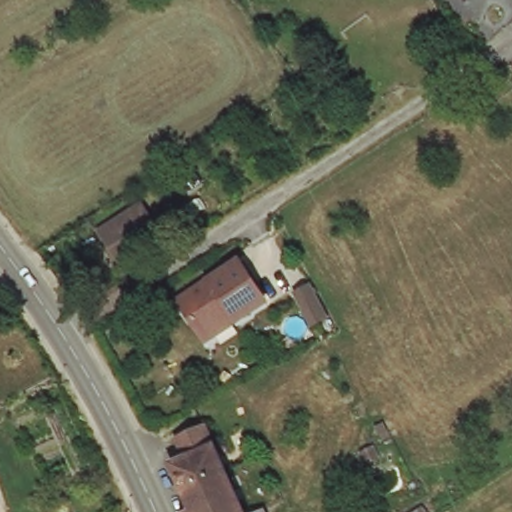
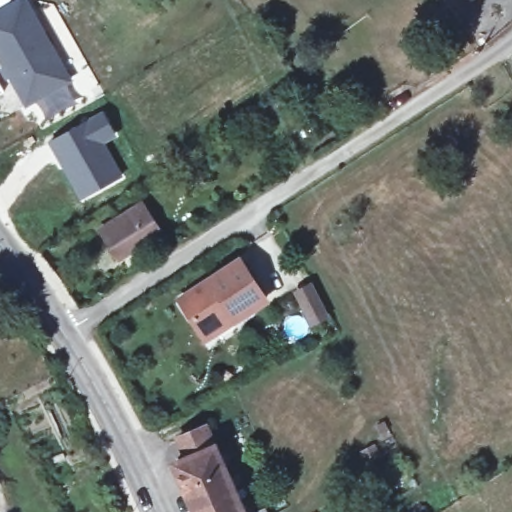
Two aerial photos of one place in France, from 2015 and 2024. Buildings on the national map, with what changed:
new [(37,102),(25,109),(0,65),(0,8),(14,0),(29,0),(74,81),(69,84),(78,102),(47,120),(37,102)]
unchanged [(469,0),(470,0),(470,1),(469,0)]
new [(102,109),(119,137),(107,144),(124,176),(79,201),(47,142),(102,109)]
unchanged [(140,207),(155,232),(113,261),(95,232),(128,211),(130,214),(140,207)]
unchanged [(239,318),(234,311),(205,331),(183,297),(240,258),(267,300),(239,318)]
new [(279,323),(303,312),(292,291),(311,281),(331,319),(288,341),(279,323)]
unchanged [(167,468),(175,466),(180,463),(170,440),(197,428),(207,451),(218,475),(178,494),(167,468)]
unchanged [(235,512),(186,512),(178,494),(218,475),(235,512)]
unchanged [(256,511),(257,512),(253,512),(256,511)]

